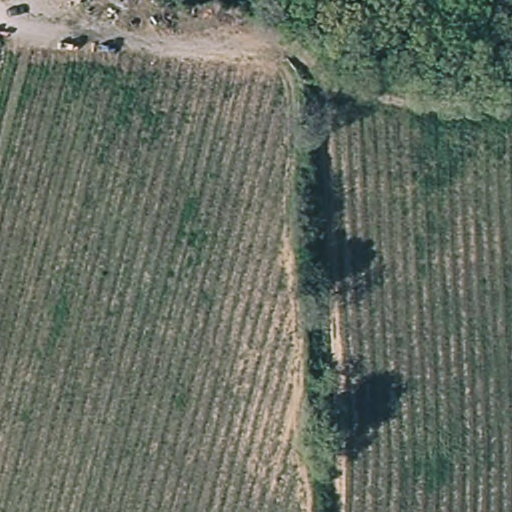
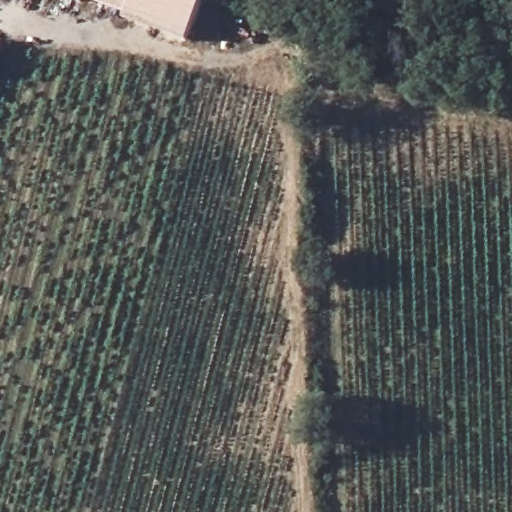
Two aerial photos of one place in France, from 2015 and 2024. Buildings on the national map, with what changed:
new [(68,0),(80,0),(78,3),(68,0)]
new [(186,43),(122,19),(123,13),(90,0),(195,0),(202,3),(186,43)]

